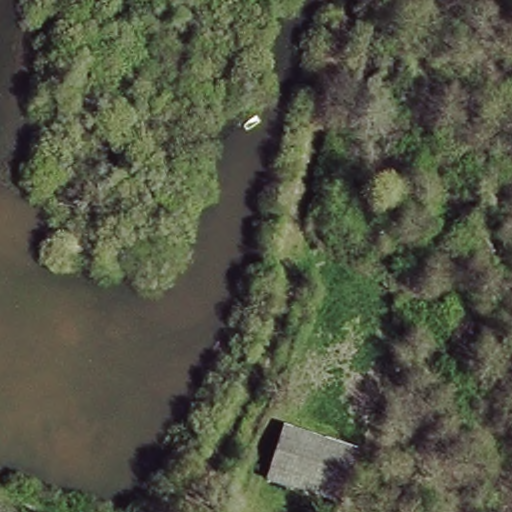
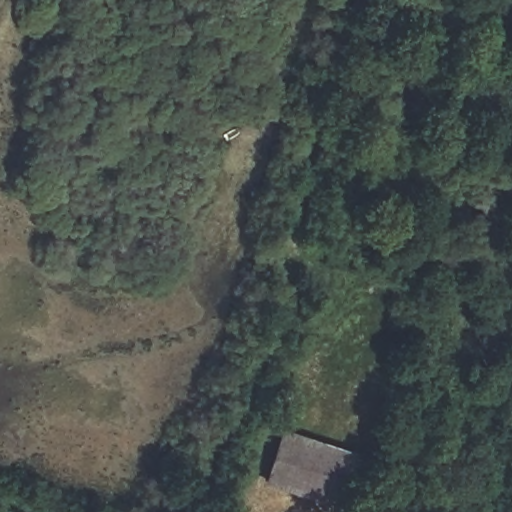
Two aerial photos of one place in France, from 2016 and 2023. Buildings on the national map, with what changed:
unchanged [(282,426),(368,452),(349,507),(264,482),(282,426)]

